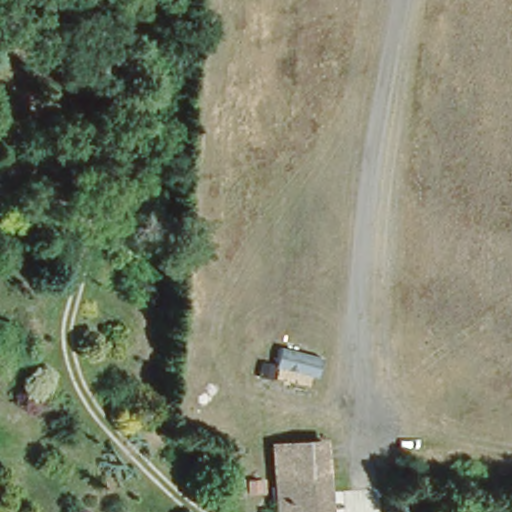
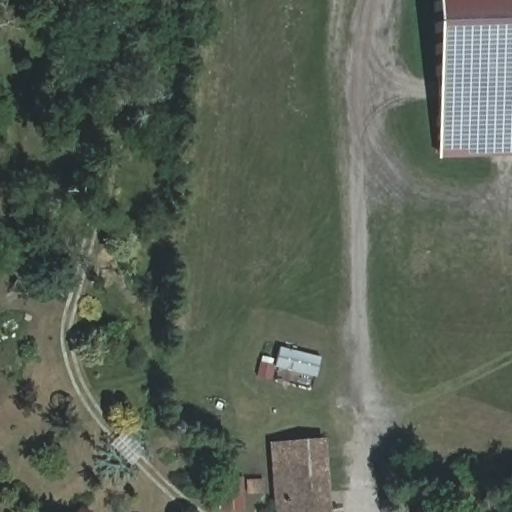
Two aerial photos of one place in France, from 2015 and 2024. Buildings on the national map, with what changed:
new [(432,0),(512,0),(512,158),(437,160),(432,0)]
new [(329,512),(275,512),(268,443),(324,438),(329,512)]
demolished [(312,462),(318,512),(284,512),(279,466),(312,462)]

